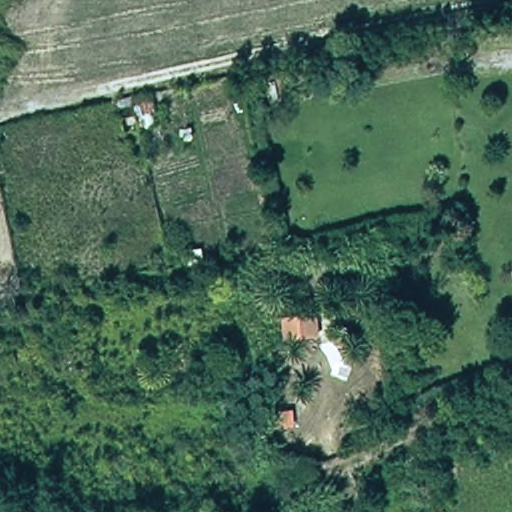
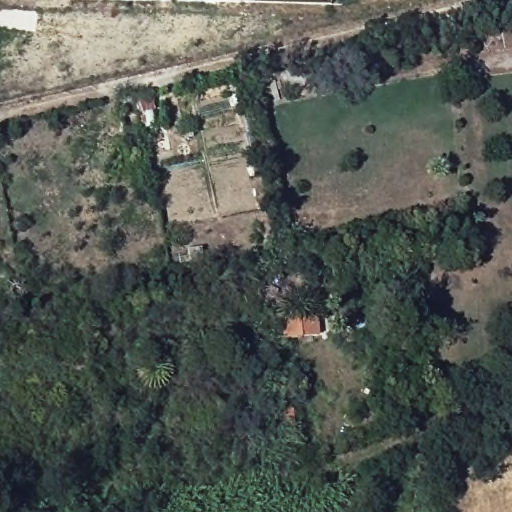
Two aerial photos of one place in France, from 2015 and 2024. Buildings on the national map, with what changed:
unchanged [(158,127),(124,136),(120,118),(135,113),(133,104),(151,100),(158,127)]
unchanged [(318,339),(282,340),(281,317),(317,314),(318,339)]

